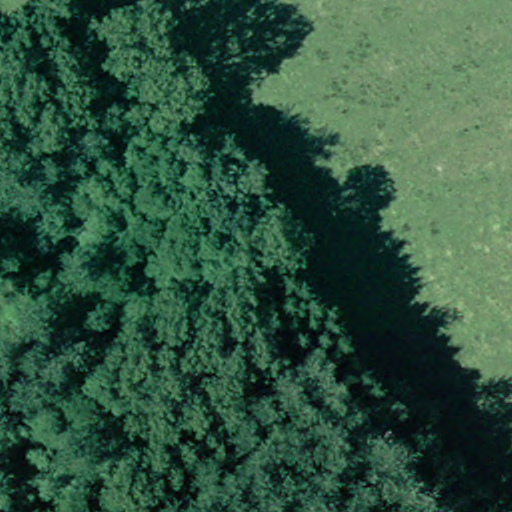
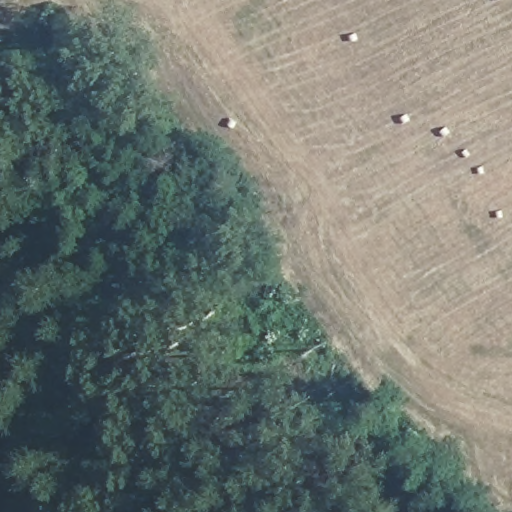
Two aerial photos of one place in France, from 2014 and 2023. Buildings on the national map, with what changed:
[]

